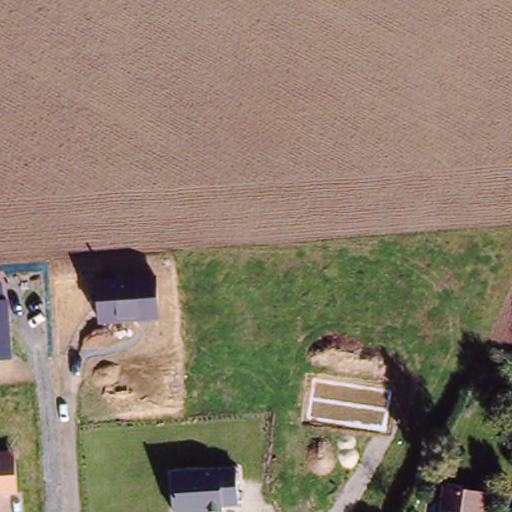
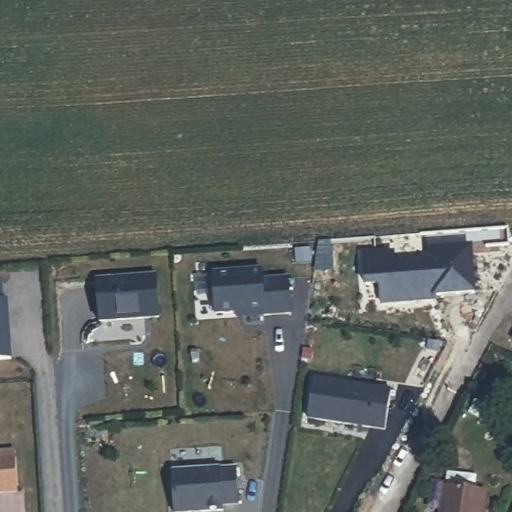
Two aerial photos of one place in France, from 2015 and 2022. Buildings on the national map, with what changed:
new [(394,254),(395,266),(427,264),(427,252),(470,248),(473,292),(442,294),(442,289),(435,290),(435,300),(383,304),(382,283),(365,285),(363,257),(394,254)]
new [(261,274),(262,284),(289,283),(291,317),(263,318),(263,313),(215,315),(212,276),(261,274)]
unchanged [(97,279),(157,276),(160,319),(100,324),(97,279)]
unchanged [(2,282),(4,301),(9,300),(12,357),(0,359),(0,283),(2,282)]
new [(512,339),(510,338),(512,334),(512,339)]
new [(392,388),(385,430),(307,418),(313,377),(392,388)]
unchanged [(15,451),(17,494),(0,496),(0,452),(15,451)]
unchanged [(172,470),(237,466),(238,505),(222,506),(222,512),(175,512),(172,470)]
unchanged [(487,489),(484,512),(443,512),(448,482),(487,489)]

